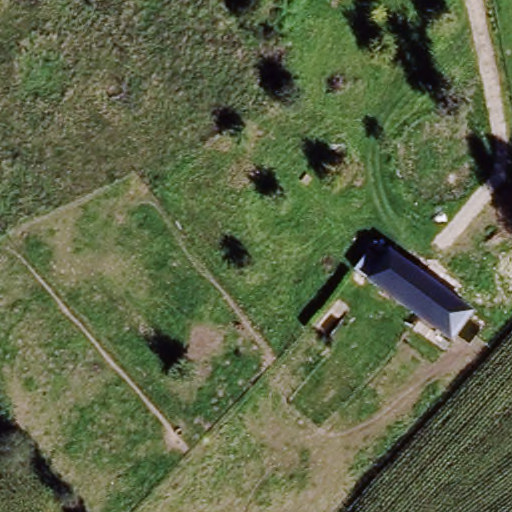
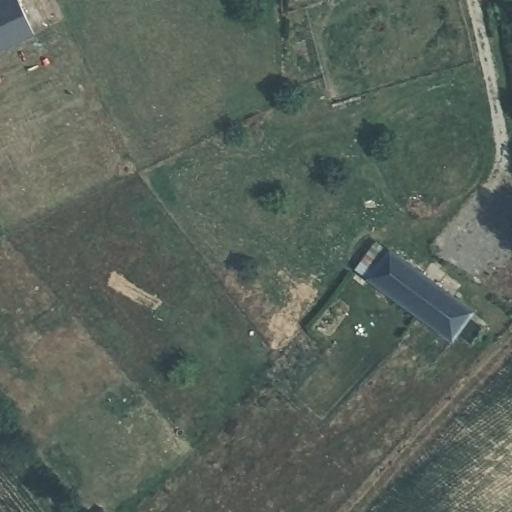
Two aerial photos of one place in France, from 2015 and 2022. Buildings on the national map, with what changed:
new [(0,50),(0,0),(14,0),(31,34),(0,50)]
unchanged [(392,292),(370,275),(391,247),(413,264),(473,311),(451,338),(410,306),(392,292)]

